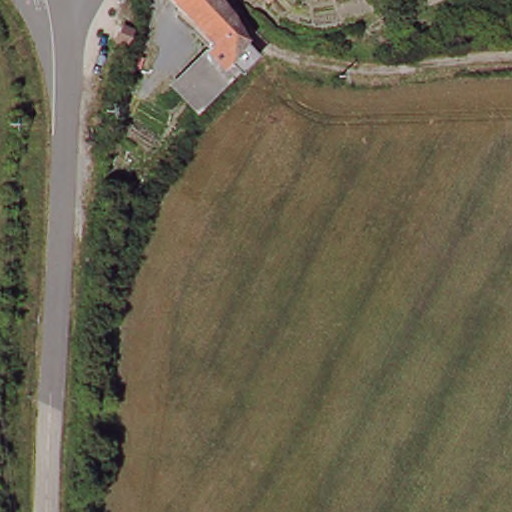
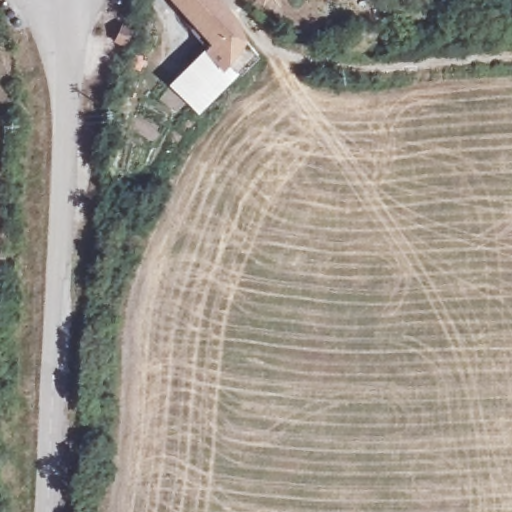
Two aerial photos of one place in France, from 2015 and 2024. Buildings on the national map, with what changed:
unchanged [(256,55),(234,77),(210,51),(215,45),(176,0),(224,0),(238,18),(256,55)]
unchanged [(234,77),(206,105),(200,111),(176,85),(210,51),(234,77)]

